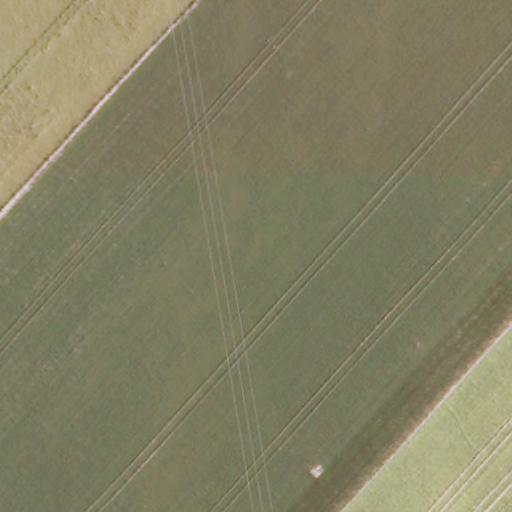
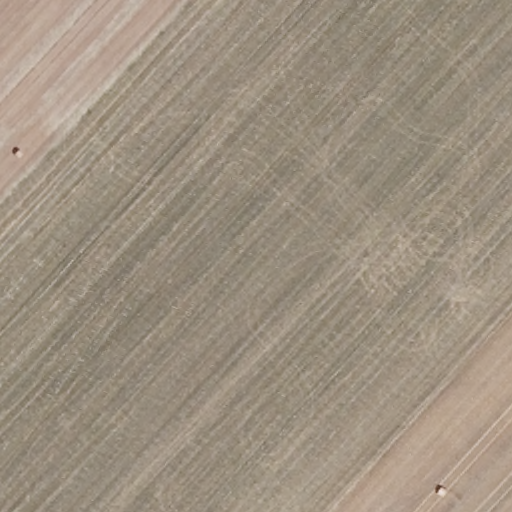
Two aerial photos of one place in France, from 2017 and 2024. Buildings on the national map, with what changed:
[]

